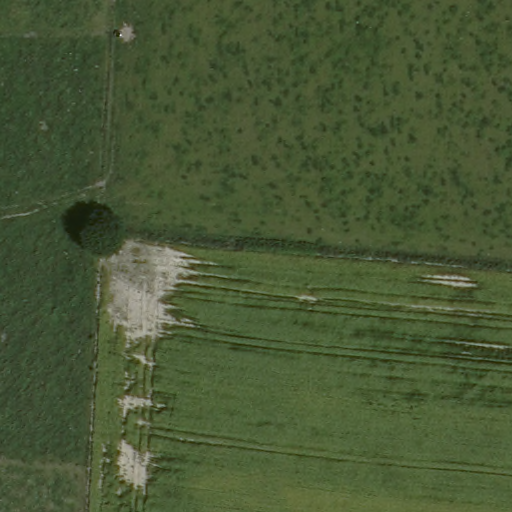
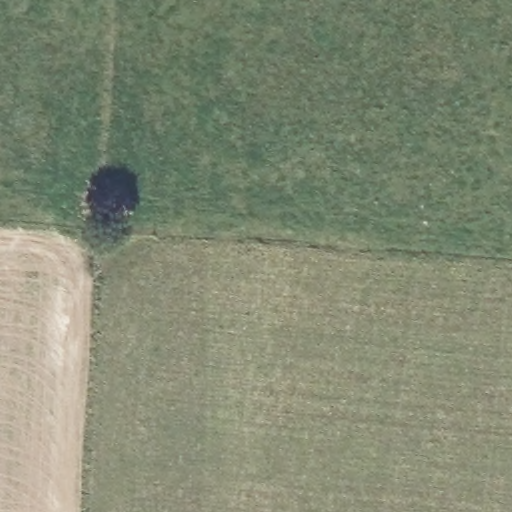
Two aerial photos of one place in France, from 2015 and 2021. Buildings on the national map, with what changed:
[]

